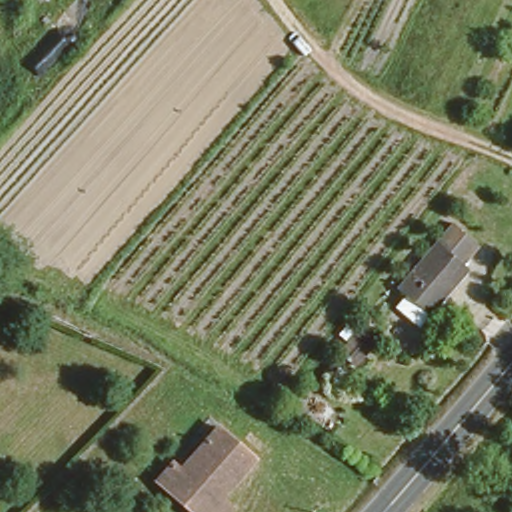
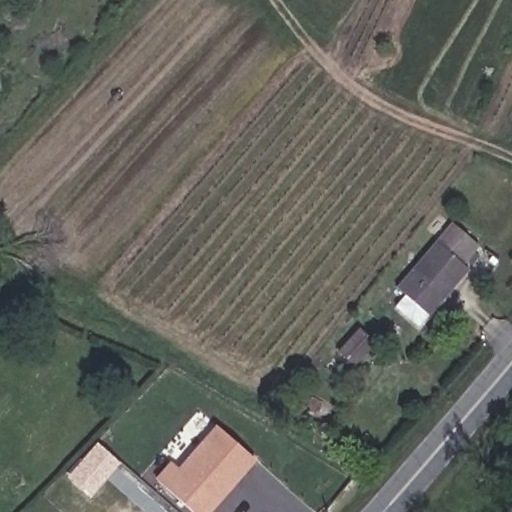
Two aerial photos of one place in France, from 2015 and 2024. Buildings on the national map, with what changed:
unchanged [(396,286),(446,226),(469,246),(458,259),(467,268),(428,313),(396,286)]
unchanged [(334,364),(356,342),(367,353),(346,377),(334,364)]
unchanged [(197,512),(157,470),(171,454),(180,464),(222,419),(258,452),(221,492),(234,504),(225,512),(197,512)]
new [(97,442),(121,463),(90,497),(67,477),(97,442)]

